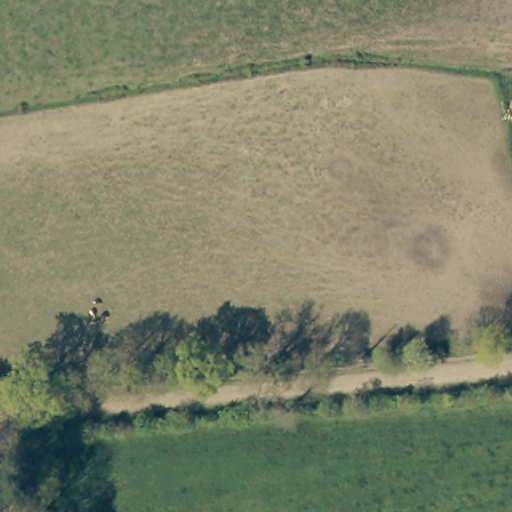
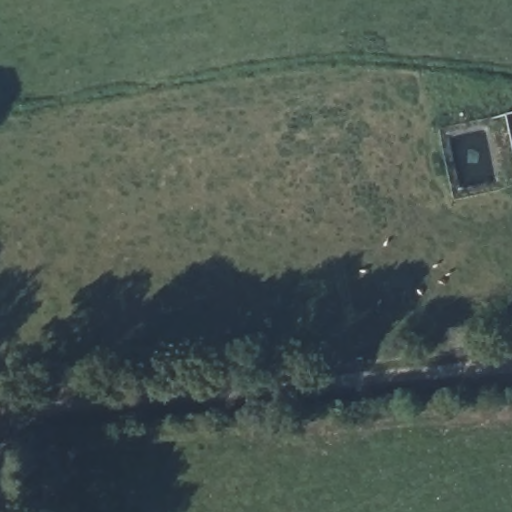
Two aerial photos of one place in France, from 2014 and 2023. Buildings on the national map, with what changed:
[]

